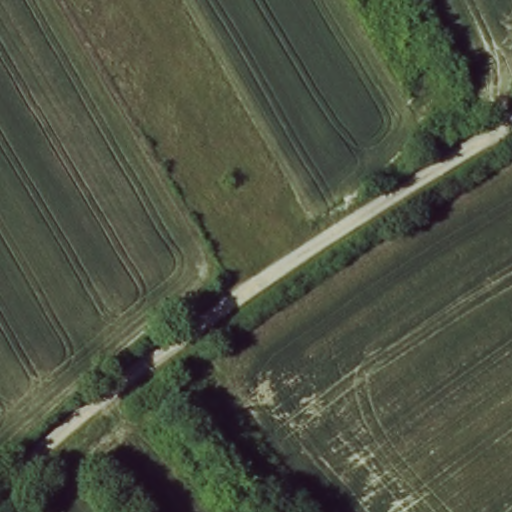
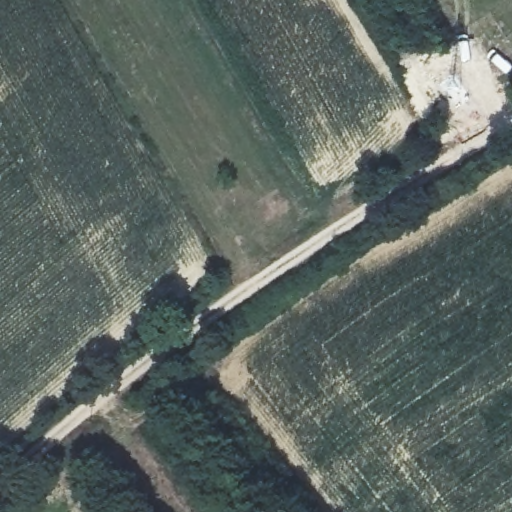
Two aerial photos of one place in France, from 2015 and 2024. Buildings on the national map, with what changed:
[]

